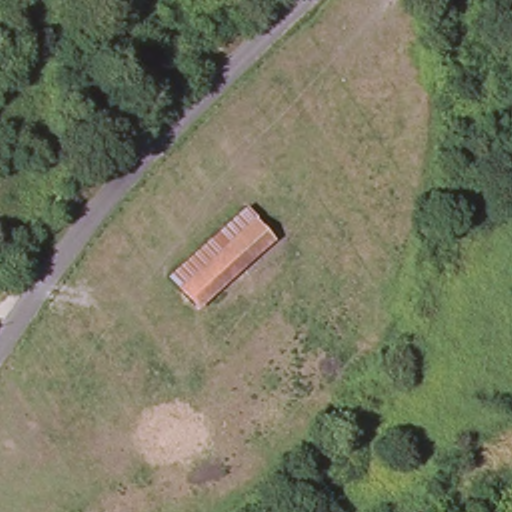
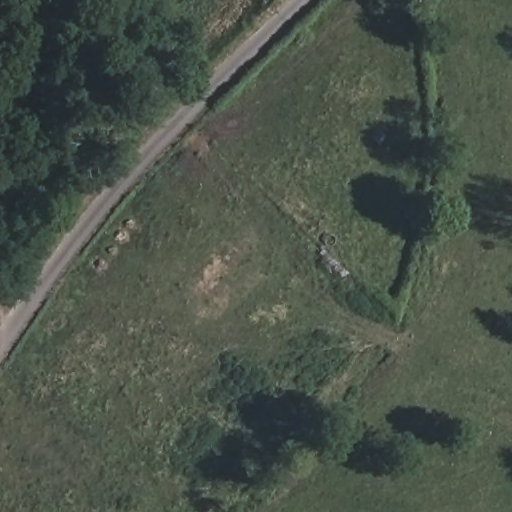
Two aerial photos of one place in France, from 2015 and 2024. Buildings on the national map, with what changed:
demolished [(193,312),(163,281),(244,211),(273,242),(193,312)]

